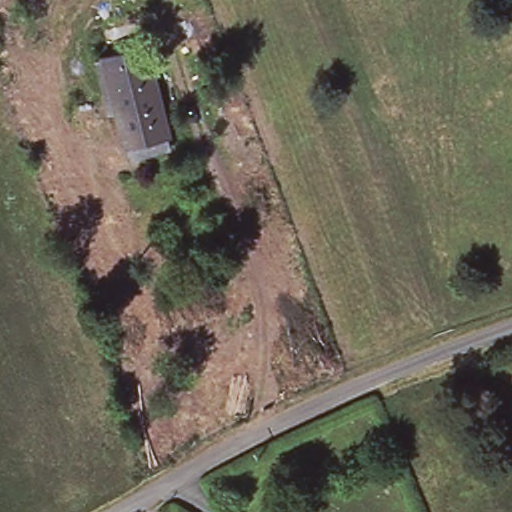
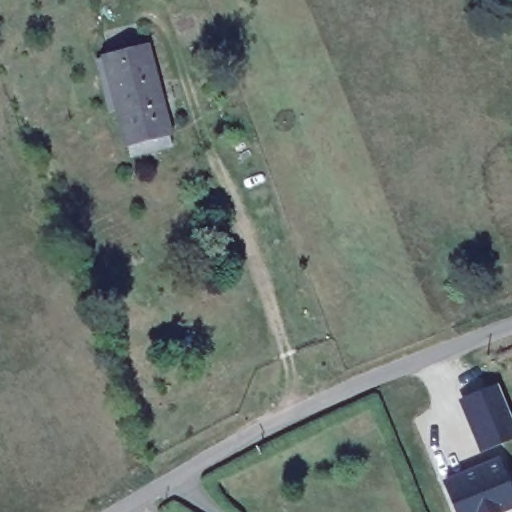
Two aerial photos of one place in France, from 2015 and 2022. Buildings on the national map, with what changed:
unchanged [(126,161),(123,150),(121,150),(99,61),(145,50),(167,139),(166,139),(169,150),(126,161)]
new [(512,415),(512,440),(480,454),(457,399),(499,382),(512,415)]
new [(512,487),(512,510),(507,512),(454,512),(442,481),(500,457),(512,487)]

